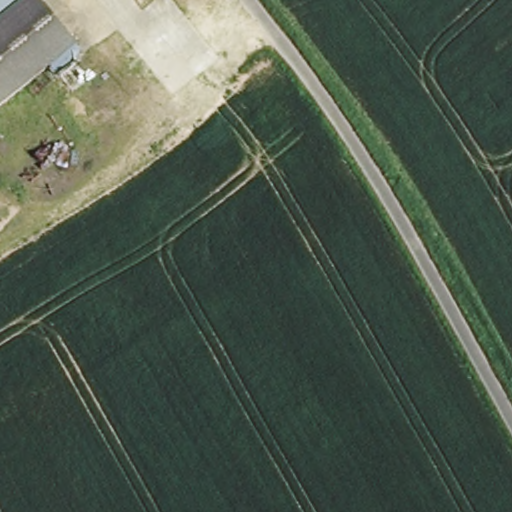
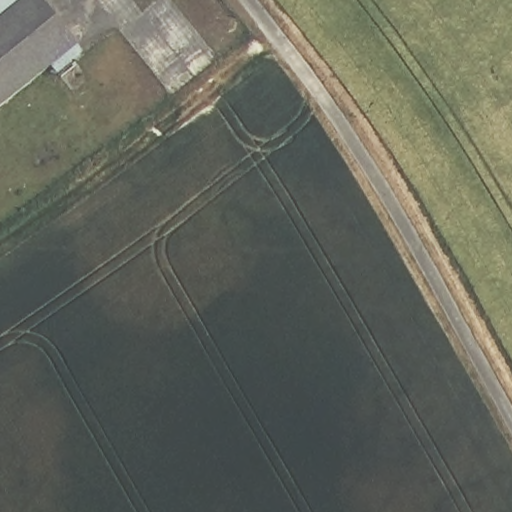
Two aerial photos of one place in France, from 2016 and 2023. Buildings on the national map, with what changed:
unchanged [(35,0),(68,42),(0,96),(0,0),(35,0)]

